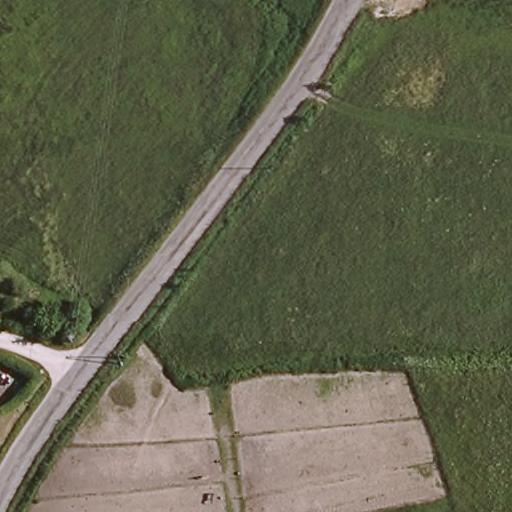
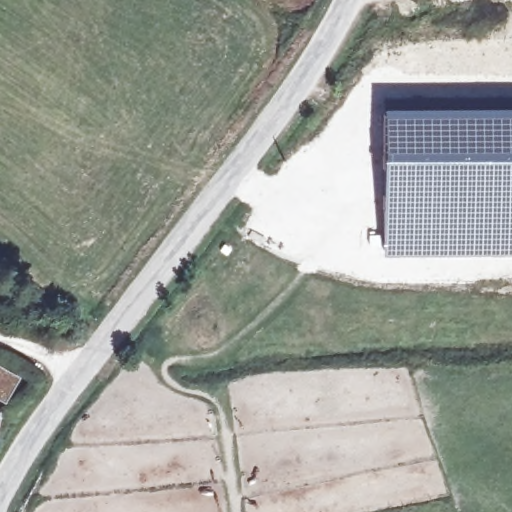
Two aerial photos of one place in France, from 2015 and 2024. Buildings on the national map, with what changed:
new [(512,105),(512,256),(382,257),(381,106),(512,105)]
unchanged [(0,428),(0,415),(3,415),(0,428)]

